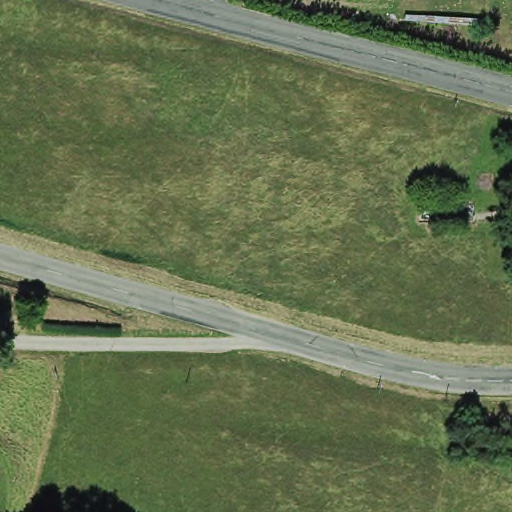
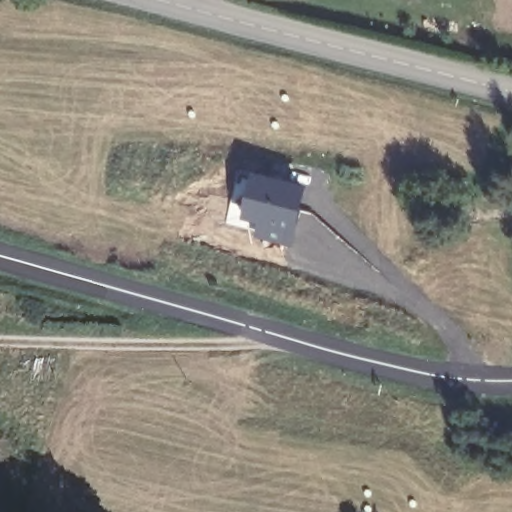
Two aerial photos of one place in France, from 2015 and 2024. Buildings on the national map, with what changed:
new [(292,246),(251,237),(255,224),(236,218),(247,173),(303,184),(292,246)]

